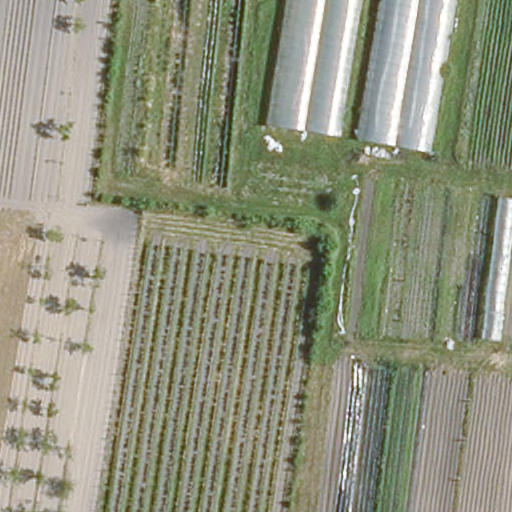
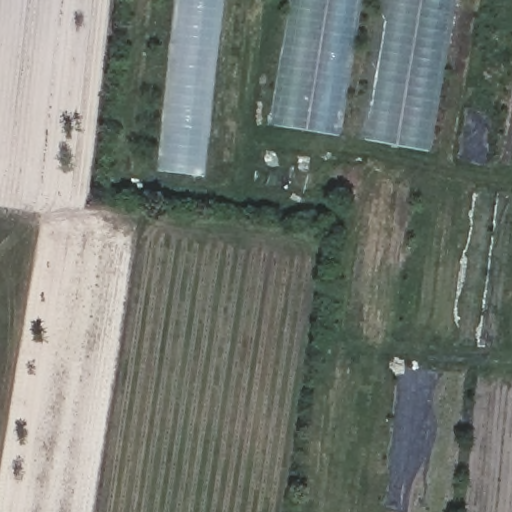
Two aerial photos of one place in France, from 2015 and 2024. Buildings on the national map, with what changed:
new [(218,0),(202,175),(159,170),(177,0),(218,0)]
unchanged [(268,124),(289,0),(363,0),(341,135),(268,124)]
unchanged [(356,140),(381,0),(456,0),(431,152),(356,140)]

